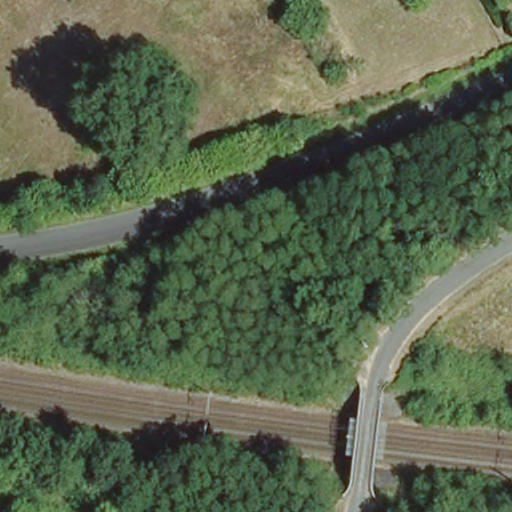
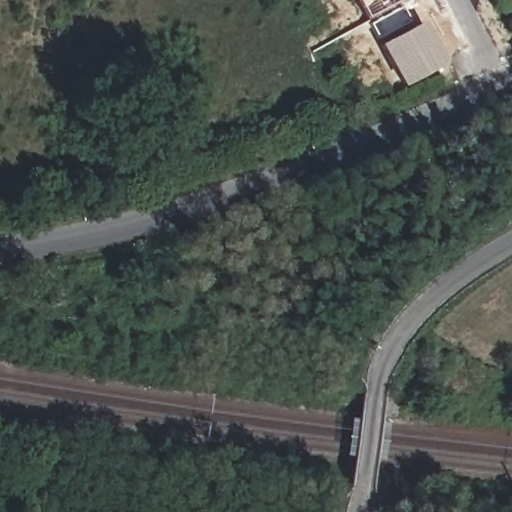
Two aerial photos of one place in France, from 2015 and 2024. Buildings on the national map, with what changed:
new [(354,0),(399,0),(365,20),(354,0)]
new [(400,7),(409,28),(422,21),(444,63),(400,86),(378,44),(369,24),(400,7)]

